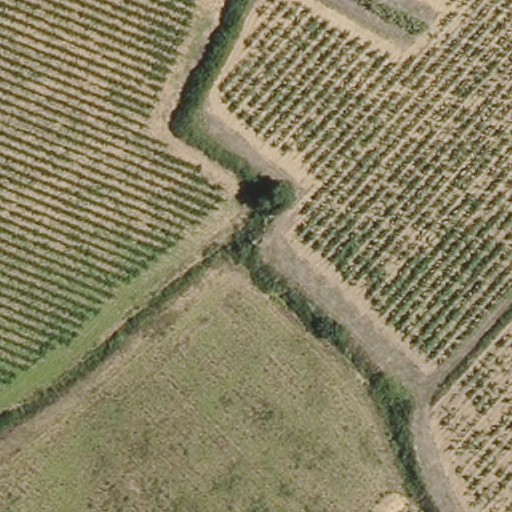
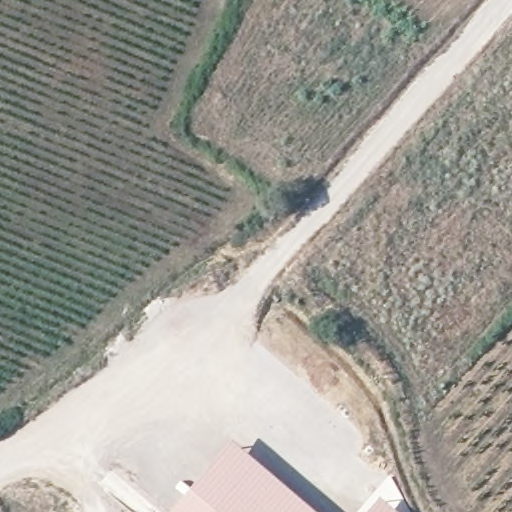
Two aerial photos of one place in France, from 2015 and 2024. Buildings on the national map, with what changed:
new [(173,512),(232,442),(315,512),(173,512)]
new [(397,512),(369,512),(381,498),(397,512)]

